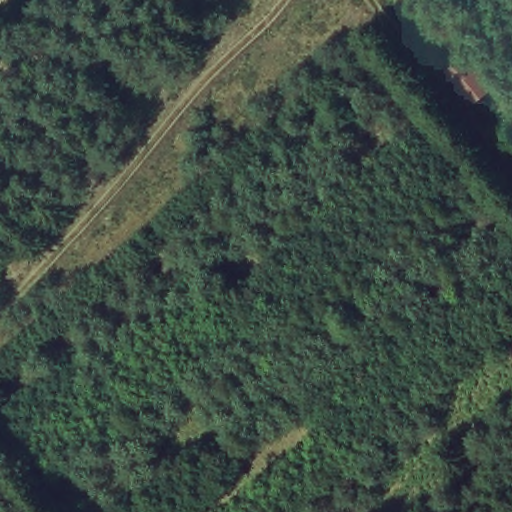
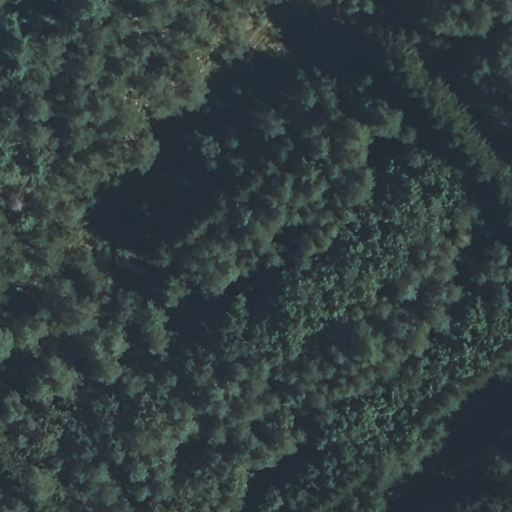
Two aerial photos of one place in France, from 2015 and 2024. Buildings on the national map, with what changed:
unchanged [(447,72),(474,50),(501,85),(473,107),(447,72)]

